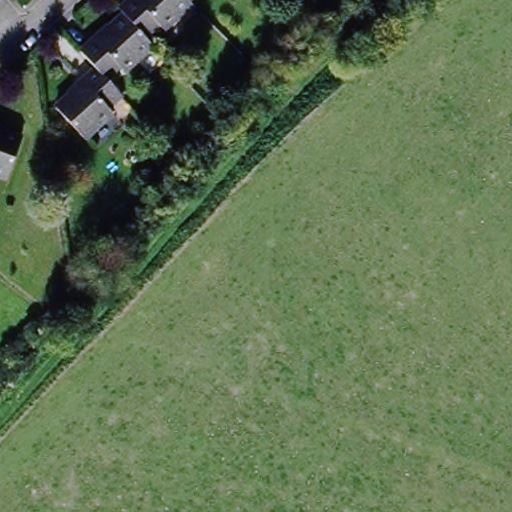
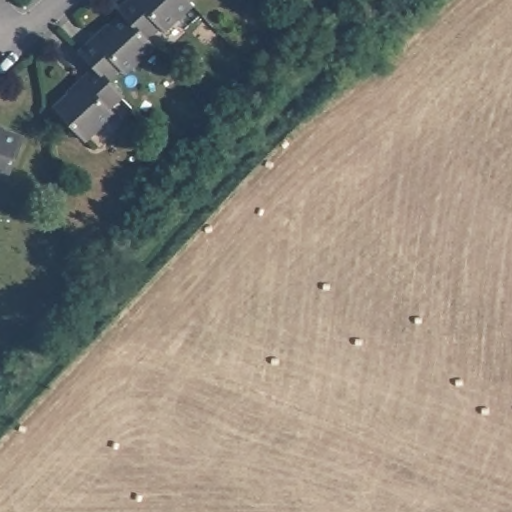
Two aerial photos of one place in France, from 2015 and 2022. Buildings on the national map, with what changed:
unchanged [(118,6),(123,0),(195,0),(195,1),(171,25),(162,16),(143,34),(121,10),(118,6)]
unchanged [(195,1),(195,0),(196,0),(195,1)]
unchanged [(153,44),(128,67),(122,61),(103,79),(94,67),(78,51),(121,10),(143,34),(153,44)]
unchanged [(120,95),(102,111),(109,119),(88,138),(55,104),(94,67),(103,79),(120,95)]
unchanged [(15,124),(8,166),(0,164),(0,122),(15,124)]

